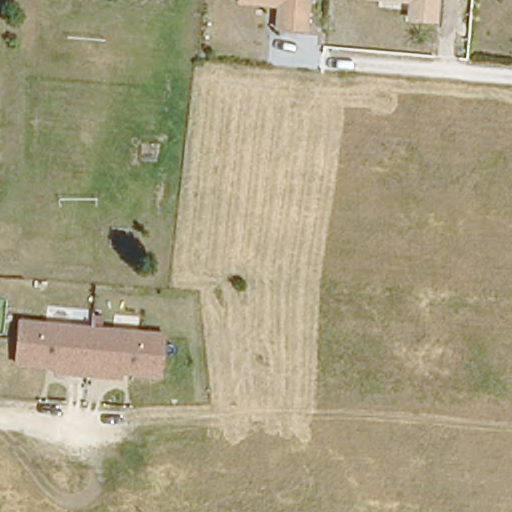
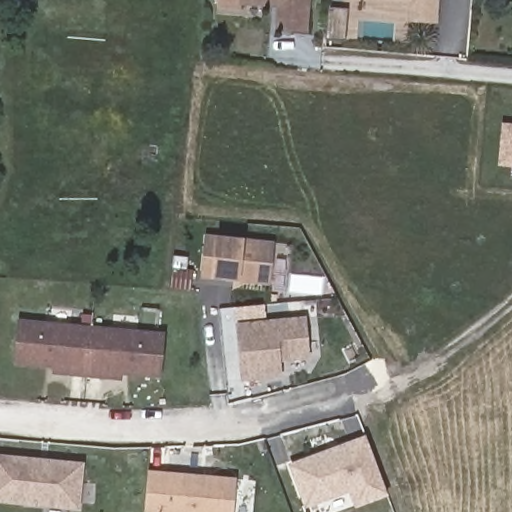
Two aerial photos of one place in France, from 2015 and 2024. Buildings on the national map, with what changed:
unchanged [(307,33),(270,31),(271,8),(235,5),(235,0),(309,0),(307,33)]
unchanged [(440,25),(410,23),(411,4),(358,0),(441,0),(440,25)]
new [(328,9),(348,10),(346,28),(345,44),(325,42),(326,26),(328,9)]
new [(512,124),(512,167),(497,166),(501,123),(512,124)]
new [(232,288),(233,280),(200,275),(205,233),(275,241),(270,284),(246,282),(232,288)]
new [(280,362),(282,378),(240,382),(235,322),(305,316),(310,358),(280,362)]
unchanged [(14,318),(162,328),(159,376),(11,364),(14,318)]
new [(364,435),(388,497),(355,509),(347,493),(303,509),(287,464),(364,435)]
new [(0,455),(84,462),(80,510),(0,501),(0,455)]
new [(232,512),(144,512),(148,469),(235,477),(232,512)]

